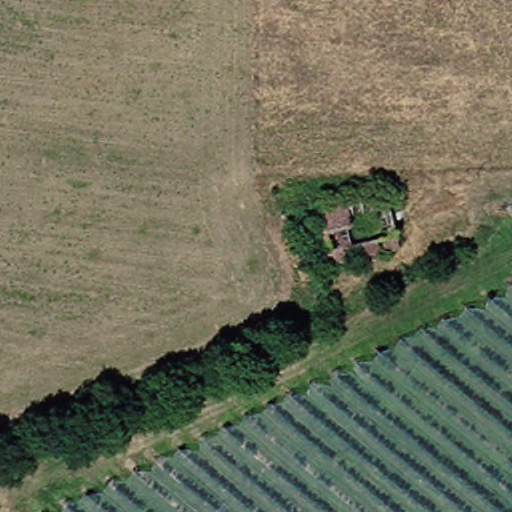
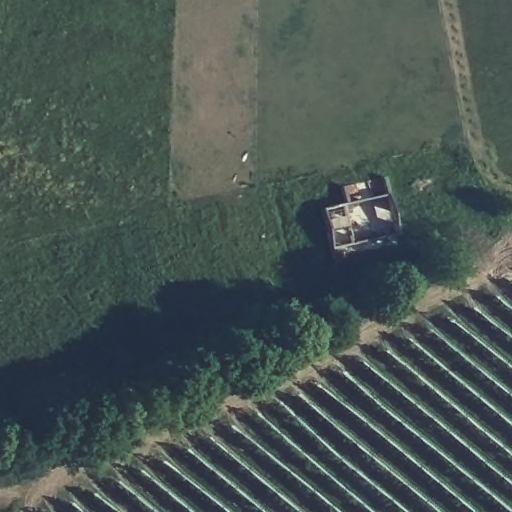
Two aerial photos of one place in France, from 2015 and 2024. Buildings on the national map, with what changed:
unchanged [(392,196),(403,249),(337,263),(325,211),(392,196)]

